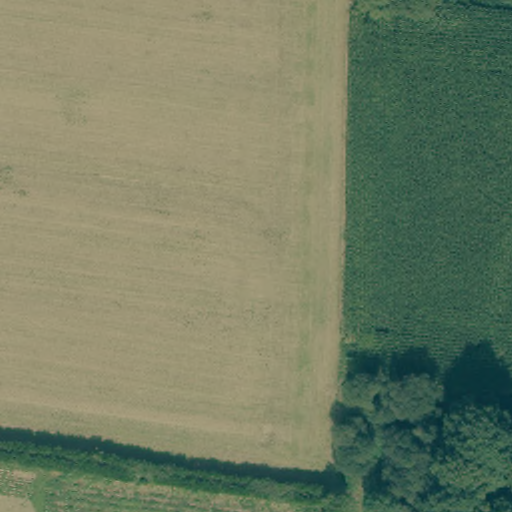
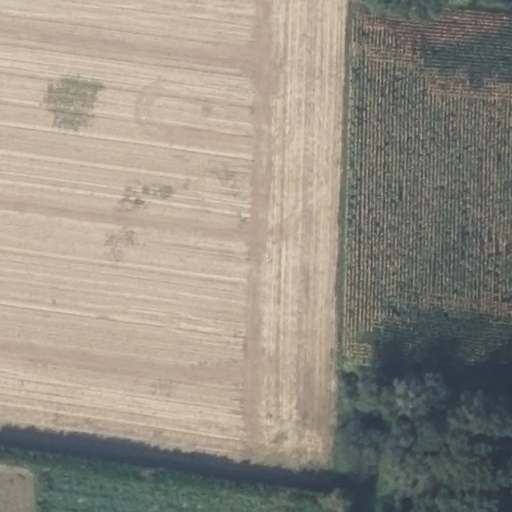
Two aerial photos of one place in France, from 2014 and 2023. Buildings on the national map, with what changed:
[]

